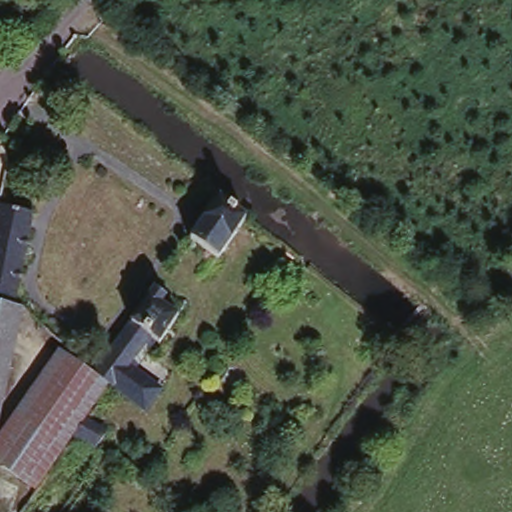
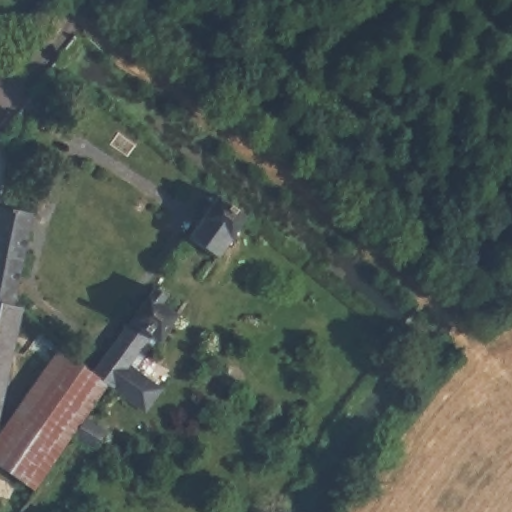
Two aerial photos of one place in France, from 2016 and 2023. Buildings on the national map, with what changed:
unchanged [(254,215),(222,257),(190,234),(220,191),(254,215)]
unchanged [(29,201),(17,293),(0,290),(0,196),(29,201)]
unchanged [(124,323),(155,281),(176,297),(163,310),(178,320),(156,349),(146,339),(130,365),(114,388),(111,386),(93,370),(124,323)]
unchanged [(17,293),(23,298),(2,415),(0,414),(0,290),(17,293)]
unchanged [(111,386),(114,388),(112,391),(92,419),(108,435),(95,455),(74,440),(35,495),(0,469),(0,436),(57,347),(93,370),(111,386)]
unchanged [(114,388),(130,365),(163,387),(146,413),(112,391),(114,388)]

